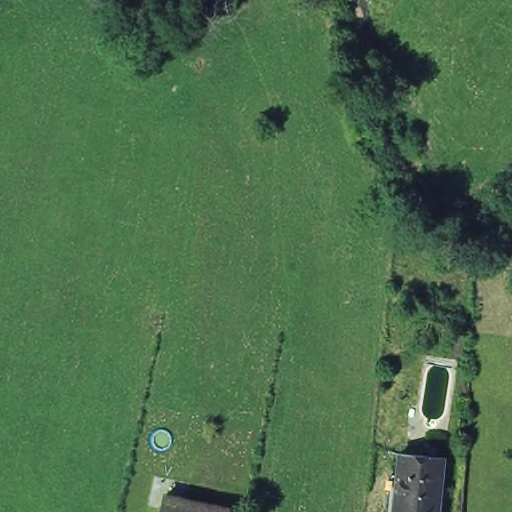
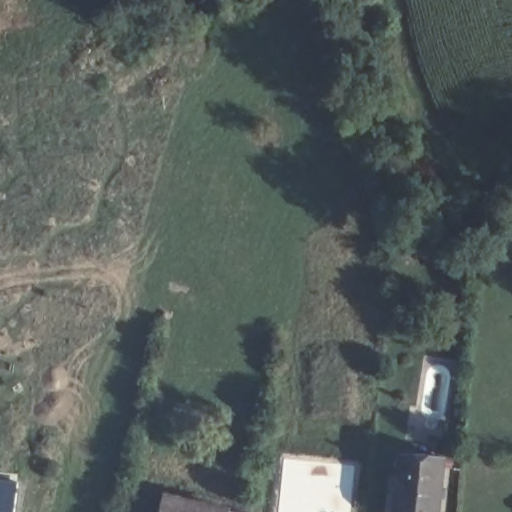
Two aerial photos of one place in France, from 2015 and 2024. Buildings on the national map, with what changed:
unchanged [(399,459),(442,462),(438,512),(394,512),(399,459)]
new [(16,481),(14,512),(0,512),(0,479),(16,481)]
unchanged [(159,505),(192,512),(157,512),(159,505)]

